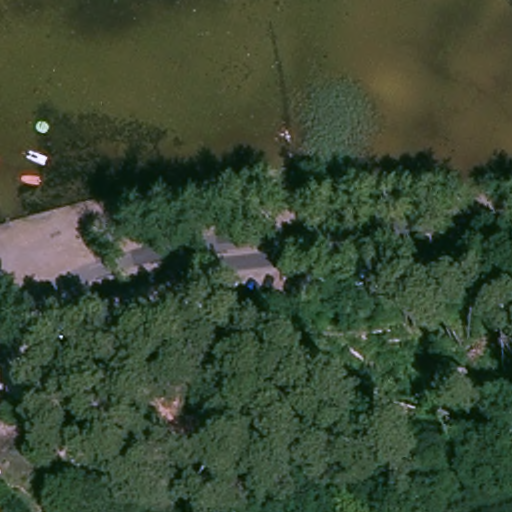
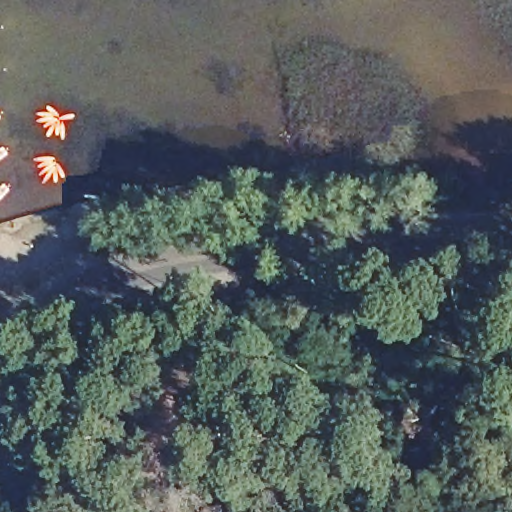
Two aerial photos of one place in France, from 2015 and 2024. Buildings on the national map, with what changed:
unchanged [(176,400),(189,432),(197,429),(200,434),(154,452),(139,415),(176,400)]

